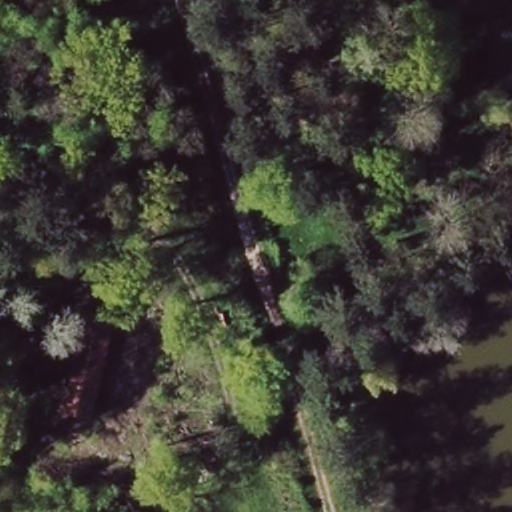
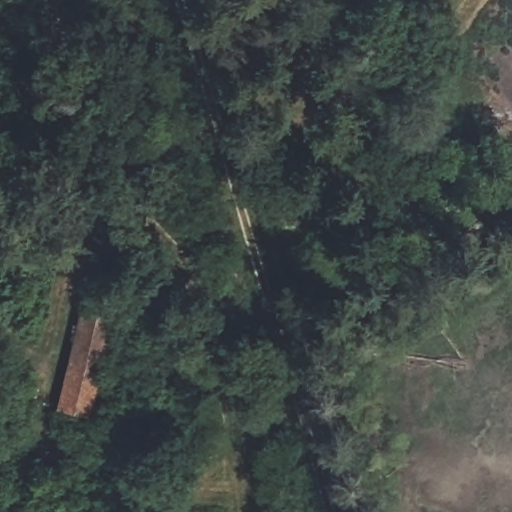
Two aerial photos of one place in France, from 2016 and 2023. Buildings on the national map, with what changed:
unchanged [(95,33),(81,5),(91,0),(131,0),(138,16),(95,33)]
unchanged [(82,415),(50,407),(83,312),(115,322),(82,415)]

